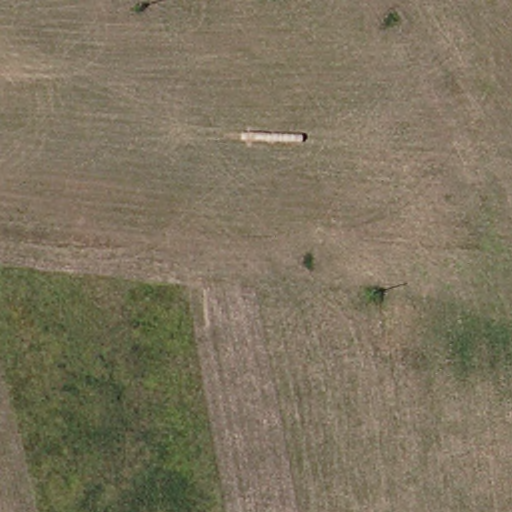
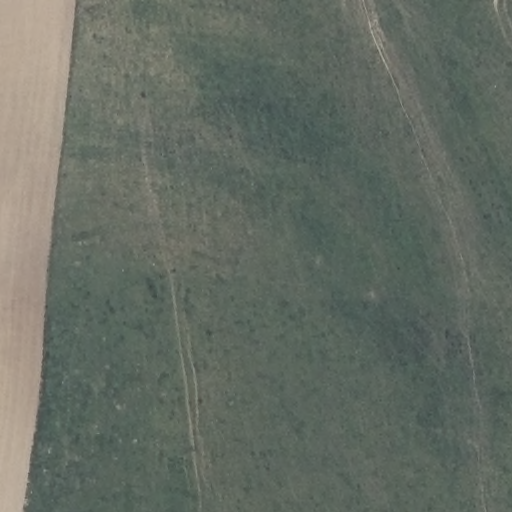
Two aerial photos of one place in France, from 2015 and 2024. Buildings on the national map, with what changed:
[]

